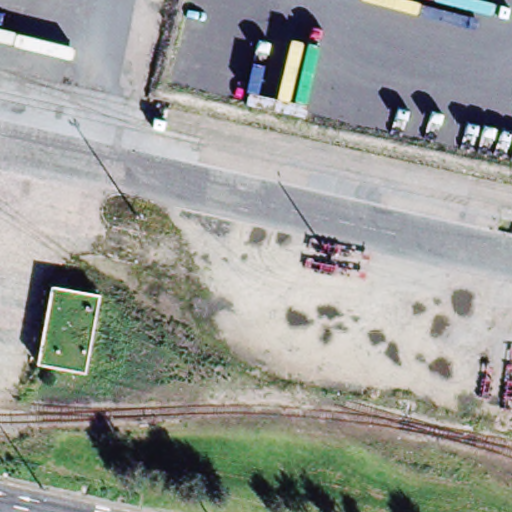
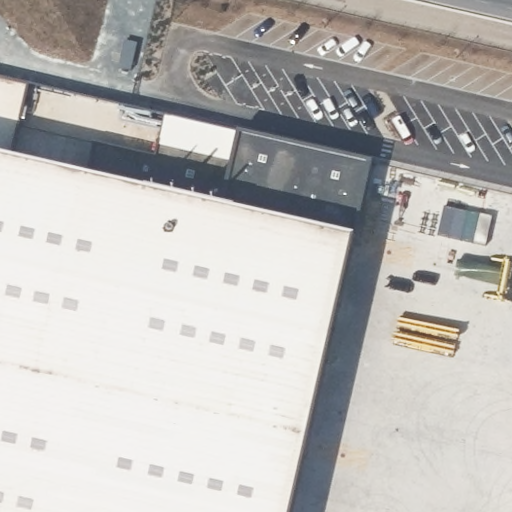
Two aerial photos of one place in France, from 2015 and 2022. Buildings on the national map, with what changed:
new [(232,124),(366,163),(291,512),(0,512),(0,169),(204,212),(232,124)]
demolished [(37,361),(52,284),(99,293),(84,370),(37,361)]

